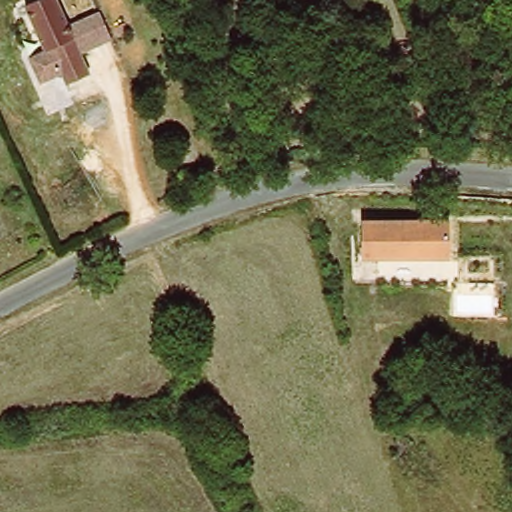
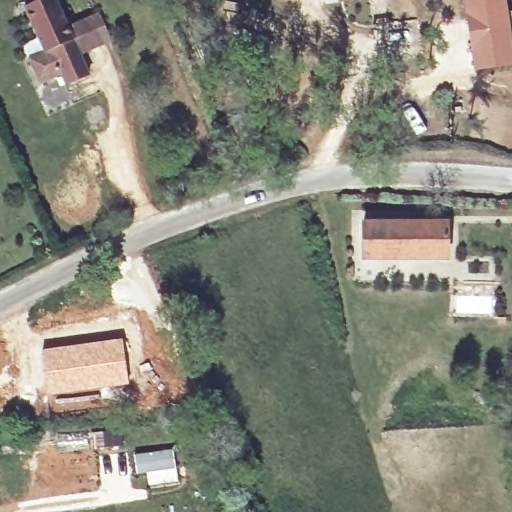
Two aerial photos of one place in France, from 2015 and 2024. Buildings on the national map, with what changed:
unchanged [(58,0),(70,26),(97,14),(109,41),(82,53),(92,74),(65,86),(60,74),(39,84),(27,59),(43,51),(25,9),(43,0),(58,0)]
new [(340,0),(355,0),(340,3),(340,0)]
new [(512,10),(512,63),(474,69),(463,0),(507,0),(508,10),(512,10)]
unchanged [(441,258),(359,257),(362,222),(442,221),(441,258)]
new [(123,338),(129,385),(47,397),(42,349),(123,338)]

